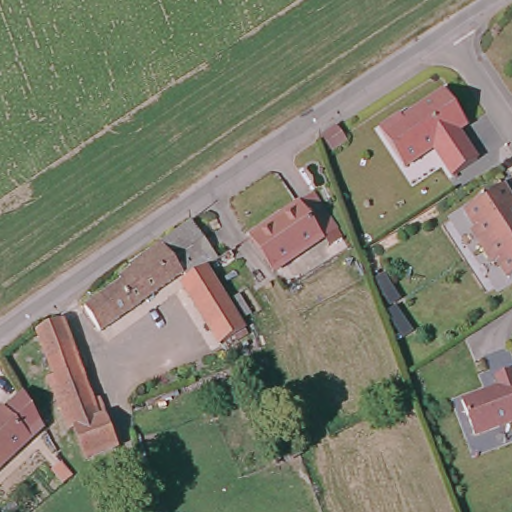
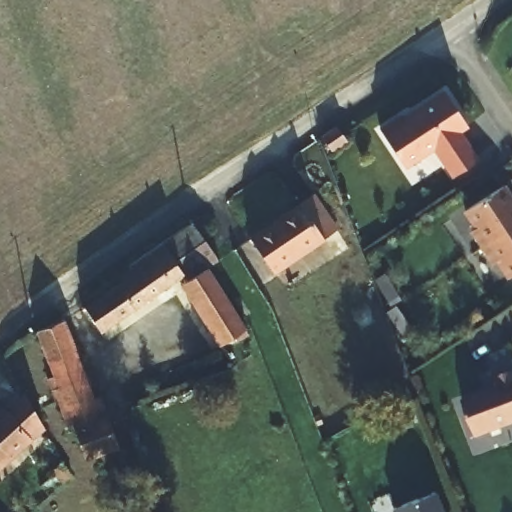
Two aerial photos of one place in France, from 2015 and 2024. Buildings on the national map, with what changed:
unchanged [(400,113),(402,117),(443,89),(464,123),(455,129),(474,159),(450,174),(431,145),(403,164),(378,126),(400,113)]
unchanged [(347,123),(356,137),(340,147),(332,133),(347,123)]
unchanged [(479,227),(483,224),(473,208),(509,185),(512,190),(512,230),(490,244),(479,227)]
unchanged [(335,225),(270,269),(246,235),(310,191),(335,225)]
unchanged [(218,349),(179,287),(183,284),(180,279),(98,330),(83,306),(119,283),(115,278),(128,270),(125,264),(158,241),(179,227),(187,221),(215,264),(208,268),(201,273),(240,334),(218,349)]
unchanged [(505,258),(501,260),(490,244),(512,230),(512,268),(505,258)]
unchanged [(236,297),(247,316),(240,321),(232,308),(228,302),(236,297)]
unchanged [(35,331),(70,317),(106,417),(108,416),(120,449),(85,462),(75,437),(61,441),(60,437),(45,400),(60,394),(58,391),(37,336),(35,331)]
unchanged [(502,380),(498,369),(512,363),(512,417),(483,428),(469,391),(502,380)]
unchanged [(20,413),(35,440),(0,470),(0,419),(15,405),(20,413)]
new [(433,492),(441,512),(394,512),(392,508),(433,492)]

